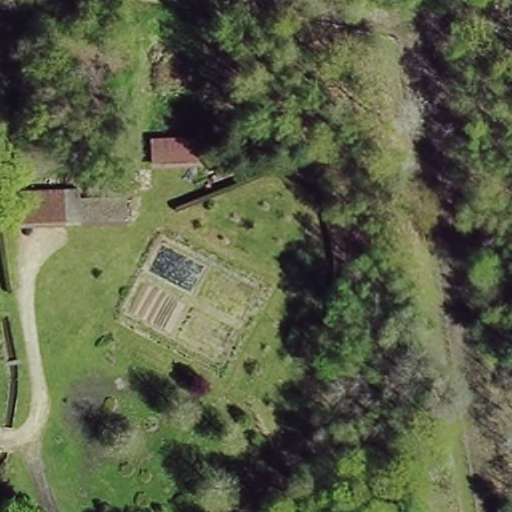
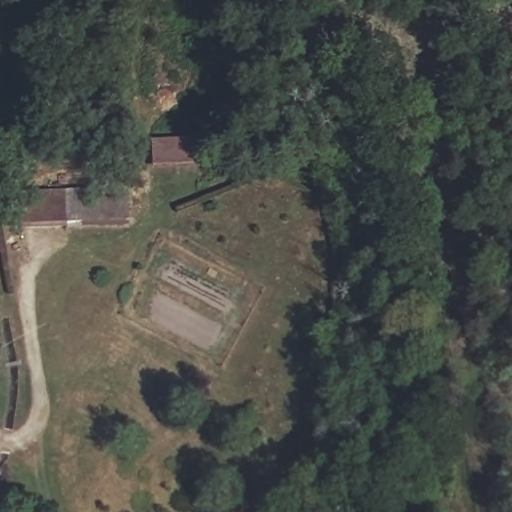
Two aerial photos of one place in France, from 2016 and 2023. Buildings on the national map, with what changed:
unchanged [(77,223),(76,195),(103,197),(102,179),(127,178),(128,223),(77,223)]
unchanged [(17,229),(18,186),(68,185),(68,226),(17,229)]

